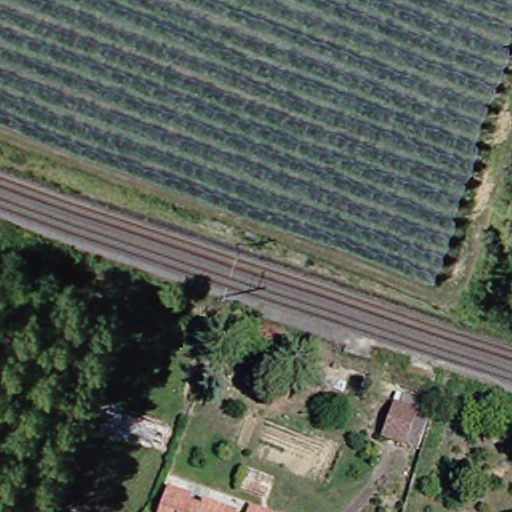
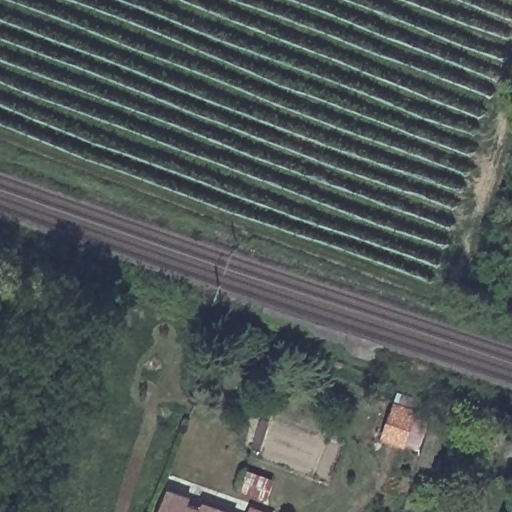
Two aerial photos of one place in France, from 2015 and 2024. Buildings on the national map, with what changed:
unchanged [(430,405),(419,436),(400,430),(411,400),(430,405)]
unchanged [(197,495),(201,501),(215,506),(217,502),(246,511),(246,512),(169,512),(178,488),(197,495)]

